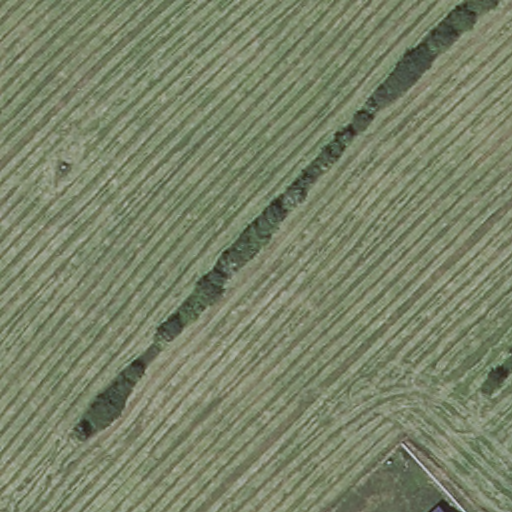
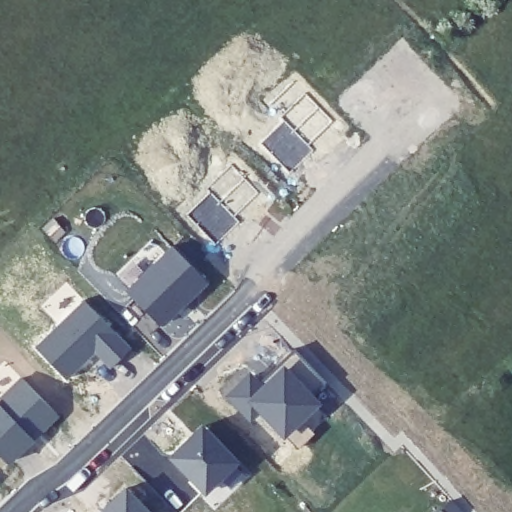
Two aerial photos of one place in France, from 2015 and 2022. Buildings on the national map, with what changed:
new [(332,121),(310,146),(313,150),(289,175),(261,145),(285,122),(280,118),(305,94),(332,121)]
new [(258,193),(234,219),(239,224),(215,246),(188,215),(210,194),(207,190),(230,166),(258,193)]
new [(208,282),(162,330),(128,293),(175,249),(208,282)]
new [(83,300),(131,348),(109,371),(95,354),(68,379),(38,348),(83,300)]
new [(264,386),(284,365),(320,405),(284,441),(260,415),(250,424),(227,399),(250,372),(264,386)]
new [(60,417),(12,466),(0,454),(0,400),(22,378),(60,417)]
new [(240,464),(205,496),(172,460),(203,426),(240,464)]
new [(149,512),(104,512),(127,488),(149,512)]
unchanged [(438,509),(441,512),(435,512),(438,509)]

